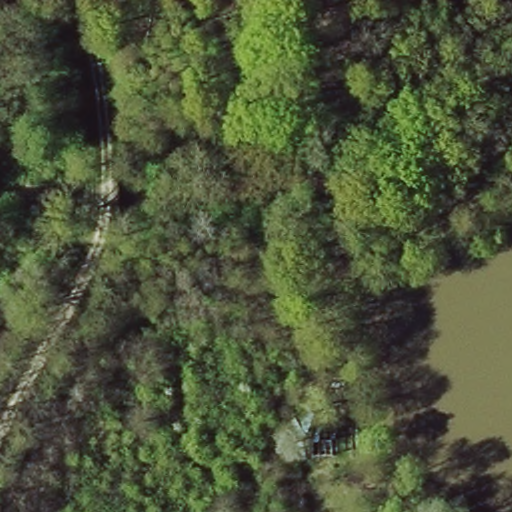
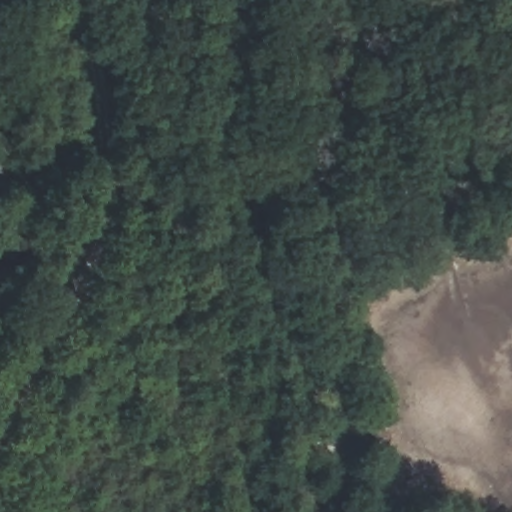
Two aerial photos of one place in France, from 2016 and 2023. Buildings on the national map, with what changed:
unchanged [(334,428),(333,454),(310,453),(312,424),(334,428)]

